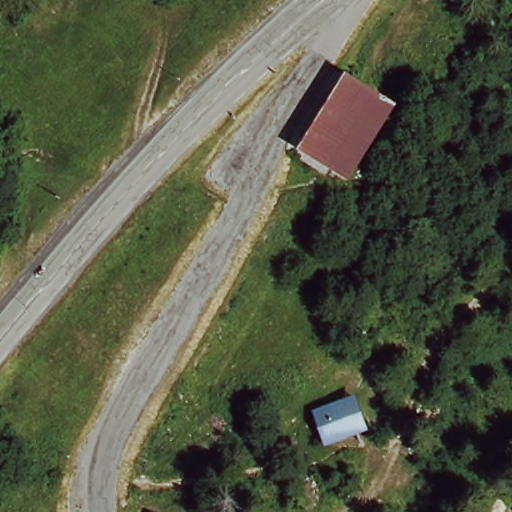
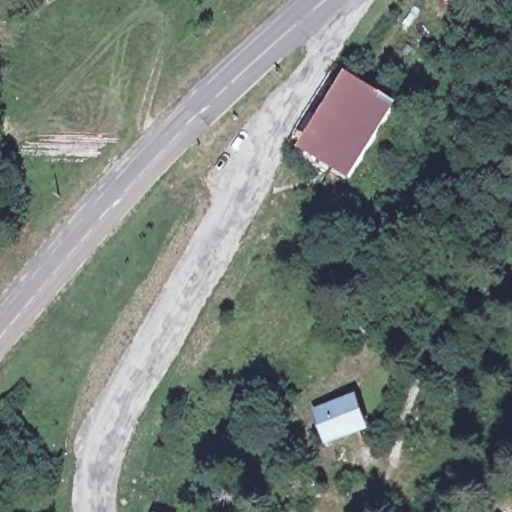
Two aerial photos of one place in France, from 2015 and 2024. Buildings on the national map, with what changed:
unchanged [(395,107),(357,179),(325,162),(304,152),(340,77),(395,107)]
unchanged [(353,392),(366,425),(322,440),(311,407),(353,392)]

